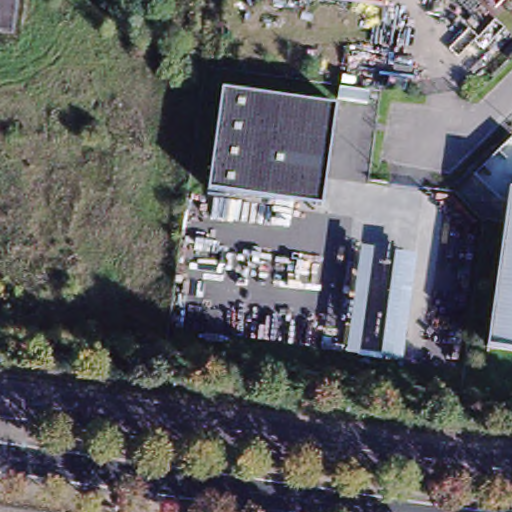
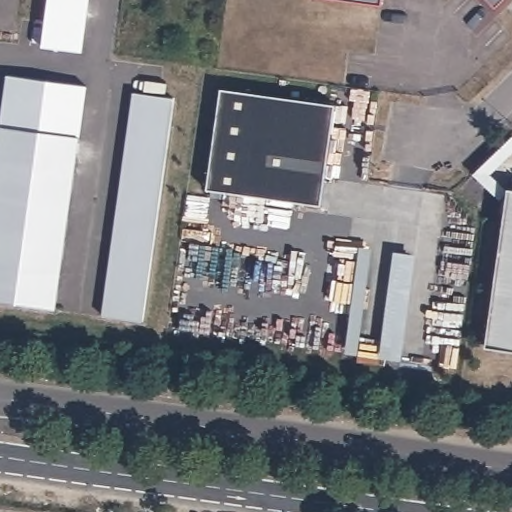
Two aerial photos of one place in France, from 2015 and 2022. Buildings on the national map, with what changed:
new [(84,53),(42,47),(48,0),(91,0),(84,53)]
unchanged [(385,1),(381,0),(385,0),(385,1)]
unchanged [(496,1),(495,0),(497,0),(496,1)]
new [(89,85),(81,137),(57,310),(0,302),(0,126),(7,74),(89,85)]
unchanged [(296,201),(209,190),(222,89),(337,103),(327,180),(324,205),(296,201)]
new [(175,95),(144,322),(102,316),(132,93),(175,95)]
unchanged [(504,223),(509,188),(512,188),(512,365),(484,361),(504,223)]
unchanged [(405,360),(381,358),(396,249),(419,254),(405,360)]

